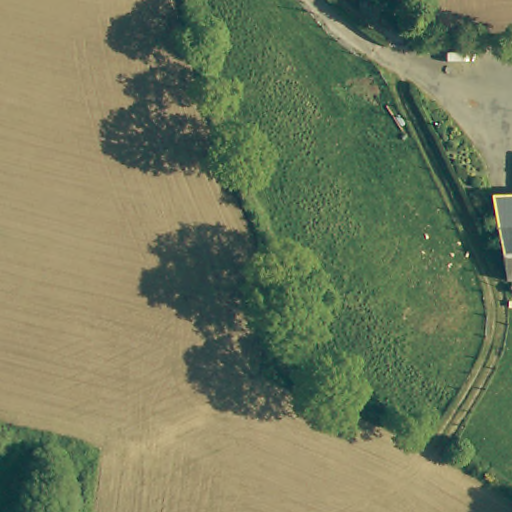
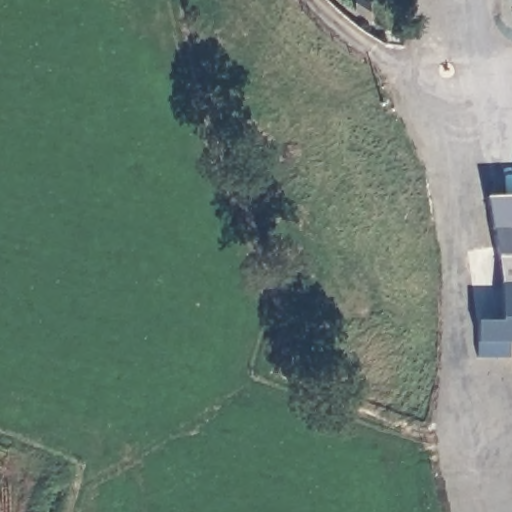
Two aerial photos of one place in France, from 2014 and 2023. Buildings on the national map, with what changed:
unchanged [(512,194),(512,282),(508,282),(500,251),(482,195),(512,194)]
new [(477,320),(501,321),(502,282),(512,282),(512,343),(507,342),(507,358),(476,358),(477,320)]

